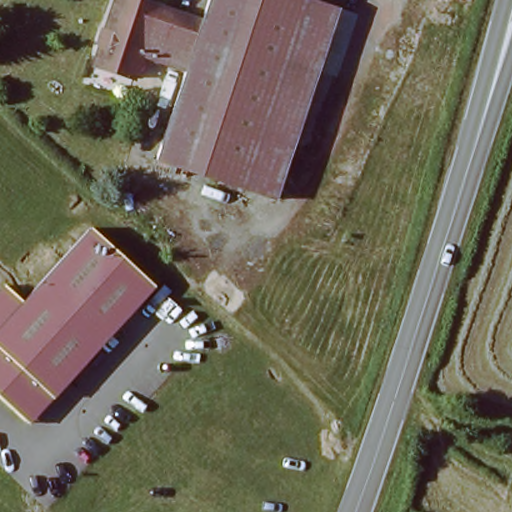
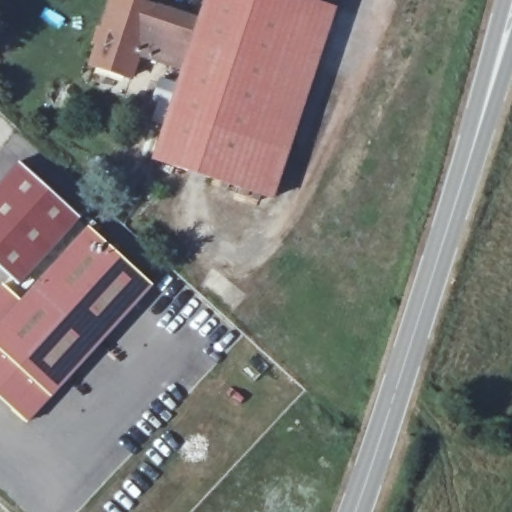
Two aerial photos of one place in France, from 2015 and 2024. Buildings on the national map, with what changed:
unchanged [(138,53),(129,75),(92,63),(114,0),(138,0),(200,19),(185,66),(138,53)]
unchanged [(207,0),(310,0),(334,8),(273,199),(154,160),(185,66),(200,19),(207,0)]
new [(17,161),(79,216),(18,285),(0,268),(0,181),(17,161)]
unchanged [(155,284),(31,417),(0,390),(0,291),(5,285),(20,297),(86,224),(155,284)]

